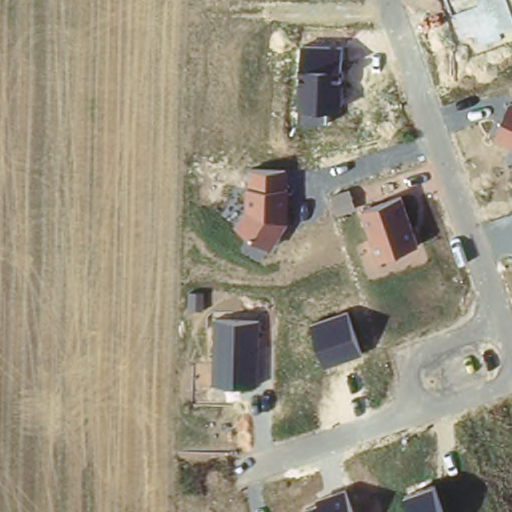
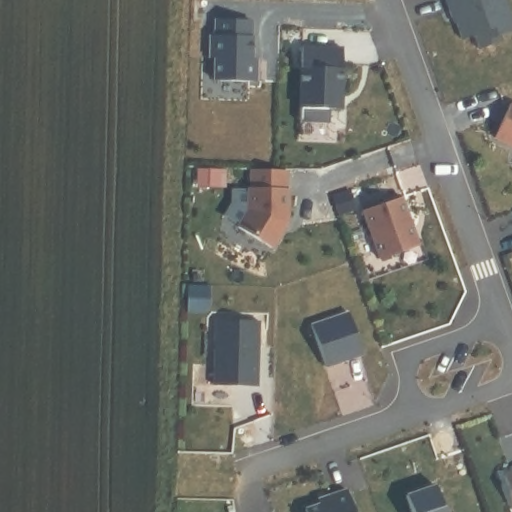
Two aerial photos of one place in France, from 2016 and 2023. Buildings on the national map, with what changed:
unchanged [(512,30),(501,35),(503,39),(480,48),(473,34),(460,38),(445,0),(506,0),(512,17),(512,30)]
new [(209,37),(213,37),(214,21),(254,22),(254,38),(255,38),(254,61),(259,61),(259,83),(212,82),(213,60),(208,60),(209,37)]
unchanged [(343,45),(341,79),(344,80),(342,110),(329,110),(329,123),(298,122),(301,42),(343,45)]
unchanged [(512,144),(493,135),(511,97),(512,98),(512,144)]
unchanged [(286,166),(286,187),(289,187),(289,221),(274,248),(237,227),(248,208),(248,185),(250,185),(250,164),(286,166)]
unchanged [(421,245),(379,262),(361,209),(402,195),(421,245)]
unchanged [(365,351),(323,366),(308,321),(349,308),(365,351)]
unchanged [(261,318),(260,382),(213,383),(214,317),(261,318)]
new [(512,508),(500,474),(512,470),(512,508)]
unchanged [(411,512),(404,493),(436,482),(446,512),(411,512)]
unchanged [(303,512),(302,506),(319,499),(318,495),(349,485),(357,512),(303,512)]

